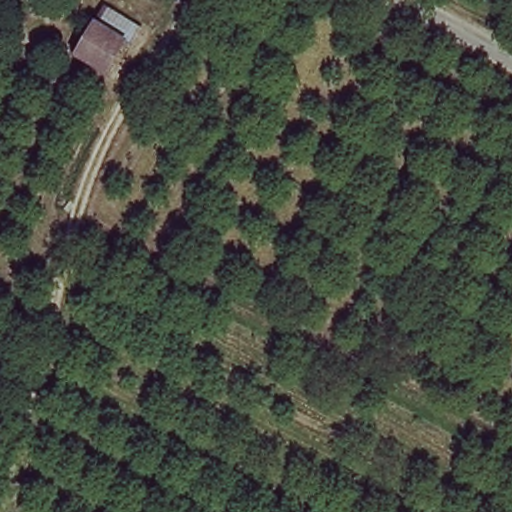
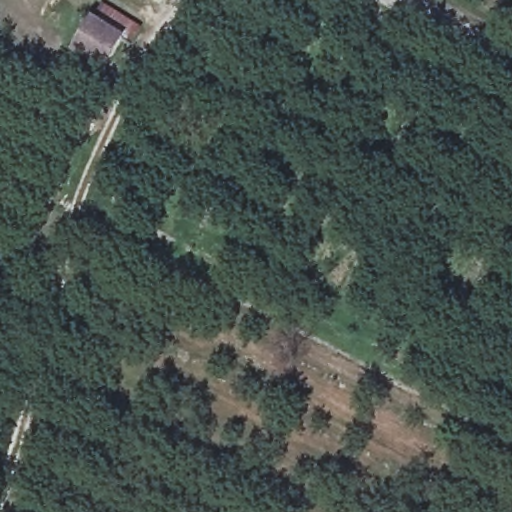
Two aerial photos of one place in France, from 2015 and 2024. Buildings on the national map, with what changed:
unchanged [(99,13),(129,35),(105,66),(76,44),(99,13)]

